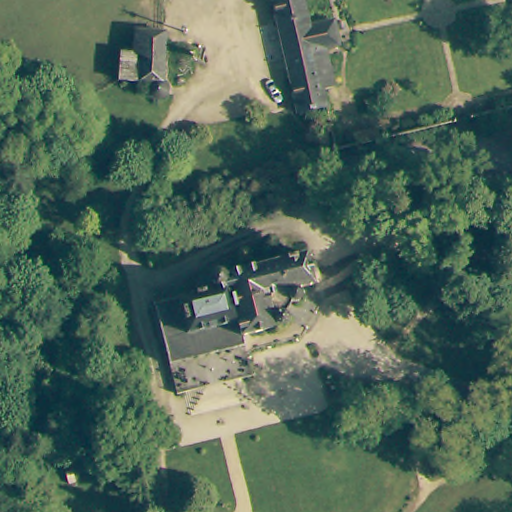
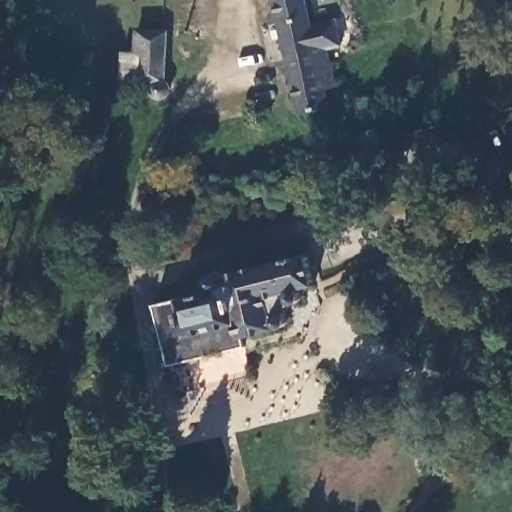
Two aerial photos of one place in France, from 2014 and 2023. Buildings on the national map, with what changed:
unchanged [(323,86),(327,101),(295,105),(273,0),(302,0),(308,27),(326,25),(330,42),(313,47),(314,50),(318,66),(332,63),(336,82),(323,86)]
unchanged [(160,29),(166,30),(162,77),(168,82),(170,89),(167,95),(161,99),(153,97),(150,90),(149,83),(145,82),(141,82),(140,77),(122,75),(120,75),(122,55),(122,50),(136,52),(137,36),(138,27),(149,28),(160,29)]
unchanged [(400,122),(403,132),(379,137),(377,126),(400,122)]
unchanged [(194,220),(194,224),(197,246),(173,250),(170,225),(194,220)]
unchanged [(222,289),(218,284),(218,278),(221,273),(226,271),(234,272),(240,277),(308,261),(315,292),(300,295),(302,300),(301,305),(298,310),(293,312),(286,310),(283,315),(289,320),(290,326),(287,330),(282,333),(276,332),(270,331),(243,337),(246,350),(241,351),(173,365),(159,305),(222,289)]

